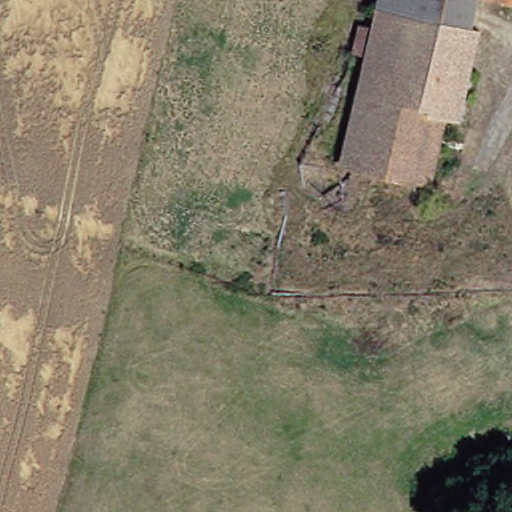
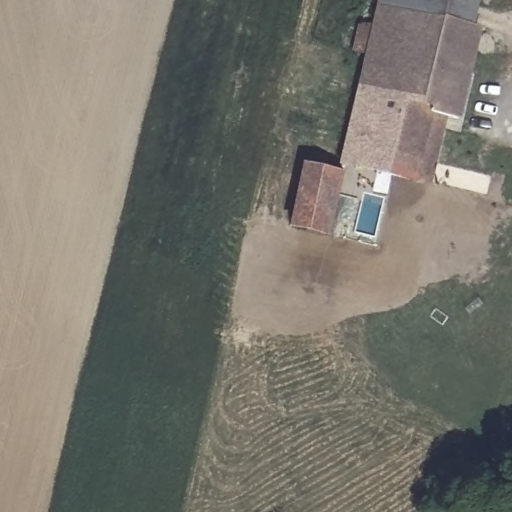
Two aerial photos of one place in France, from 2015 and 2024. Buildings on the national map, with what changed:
unchanged [(371,4),(372,0),(470,0),(463,25),(371,4)]
unchanged [(509,0),(512,0),(512,1),(509,0)]
unchanged [(396,171),(325,152),(357,49),(344,44),(351,17),(366,22),(371,4),(463,25),(442,113),(426,109),(409,175),(396,171)]
new [(302,163),(344,173),(329,239),(287,229),(302,163)]

